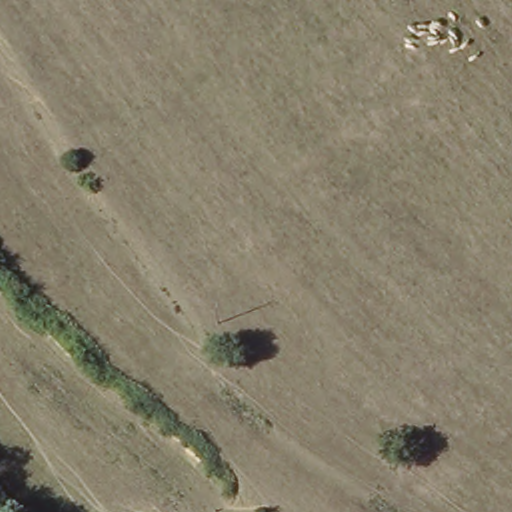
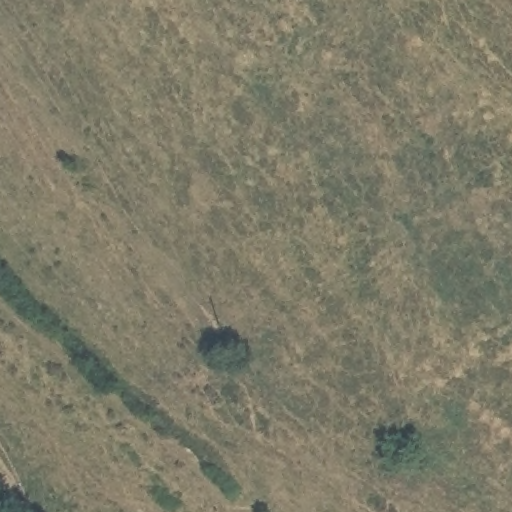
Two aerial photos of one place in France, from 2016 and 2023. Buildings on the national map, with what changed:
[]

